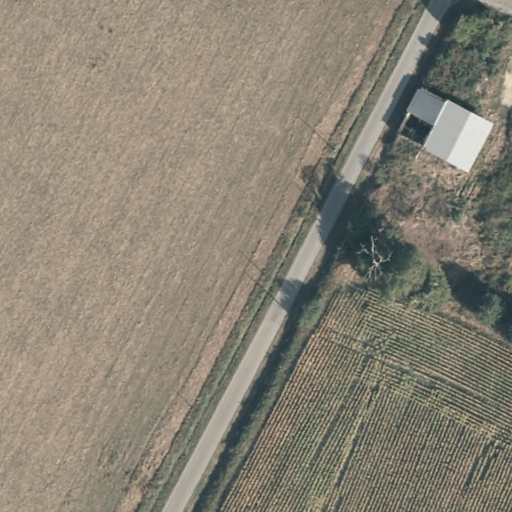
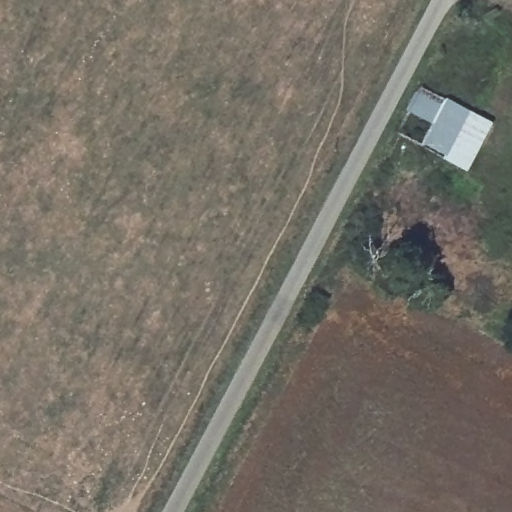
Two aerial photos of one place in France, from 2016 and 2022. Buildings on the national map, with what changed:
unchanged [(446,97),(423,145),(398,133),(423,86),(446,97)]
unchanged [(488,118),(465,165),(423,145),(446,97),(488,118)]

